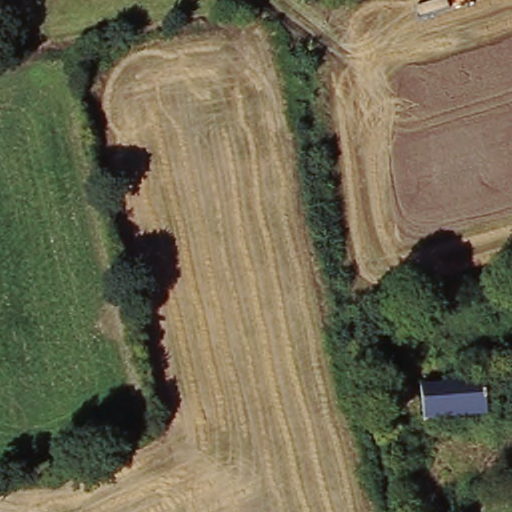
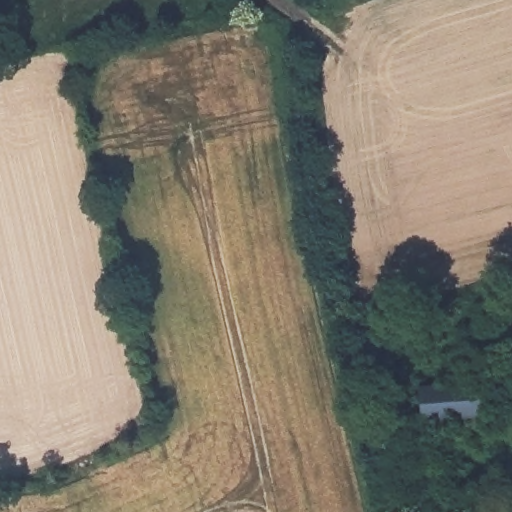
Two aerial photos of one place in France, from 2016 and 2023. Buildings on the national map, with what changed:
unchanged [(484,387),(492,416),(445,425),(405,430),(402,402),(427,397),(424,385),(456,379),(461,392),(484,387)]

